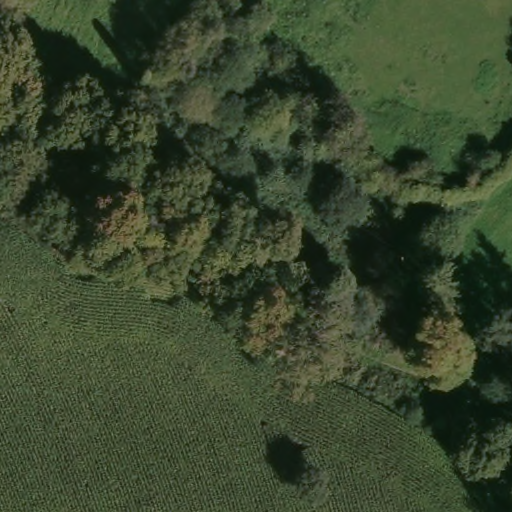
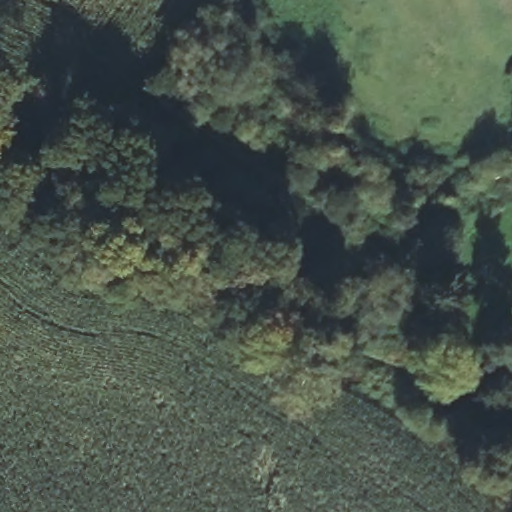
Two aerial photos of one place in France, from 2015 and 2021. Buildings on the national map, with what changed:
[]

